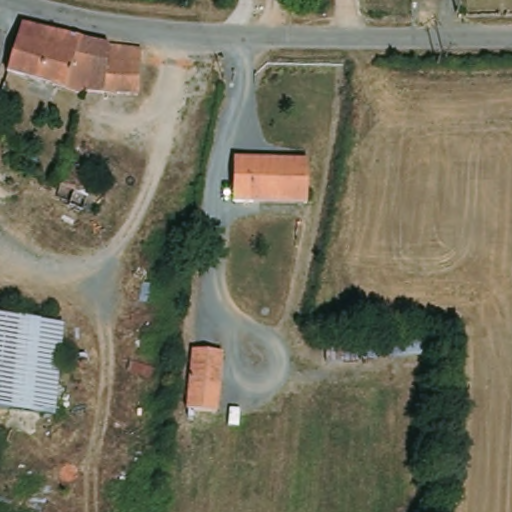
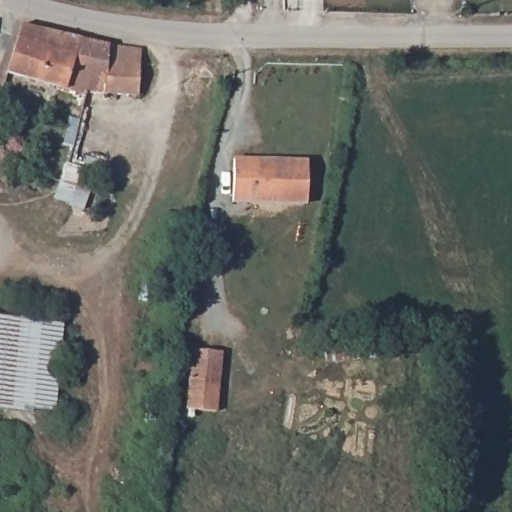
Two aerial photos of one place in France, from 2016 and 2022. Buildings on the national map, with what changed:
unchanged [(51,36),(110,52),(141,54),(139,95),(139,99),(110,95),(89,91),(87,97),(39,83),(7,76),(21,27),(51,36)]
unchanged [(78,189),(63,184),(72,157),(87,163),(78,189)]
unchanged [(307,163),(303,204),(231,199),(235,158),(246,159),(307,163)]
unchanged [(0,408),(0,318),(64,323),(56,413),(0,408)]
unchanged [(435,340),(438,356),(328,367),(327,351),(435,340)]
unchanged [(214,408),(185,404),(195,345),(221,350),(214,408)]

